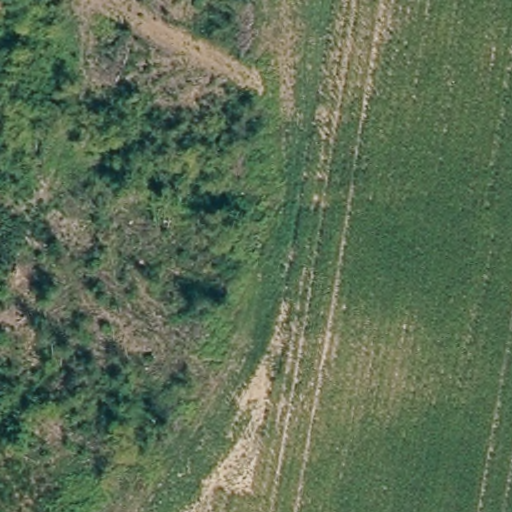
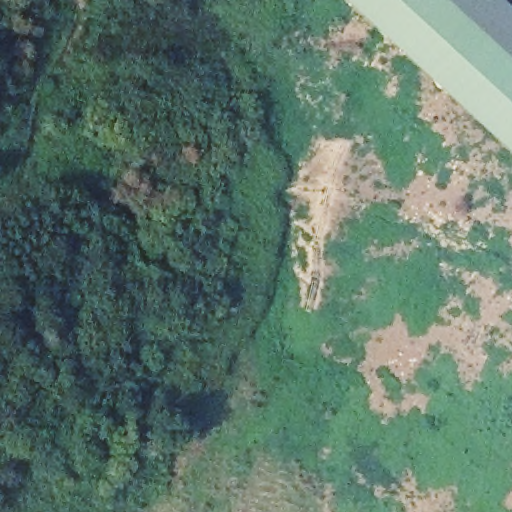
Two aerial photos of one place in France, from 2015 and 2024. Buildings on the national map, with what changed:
new [(446,0),(512,61),(512,154),(345,0),(446,0)]
new [(501,0),(512,10),(512,61),(446,0),(501,0)]

